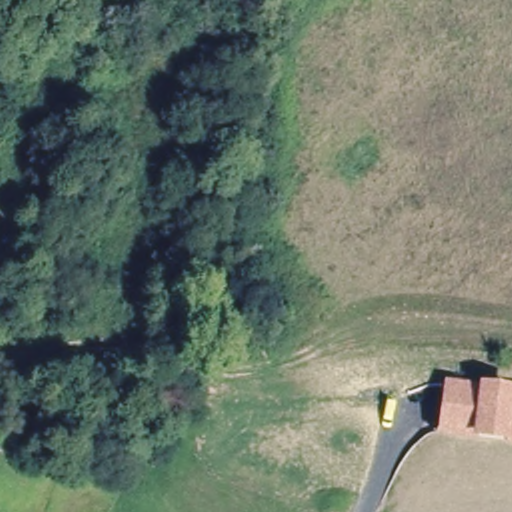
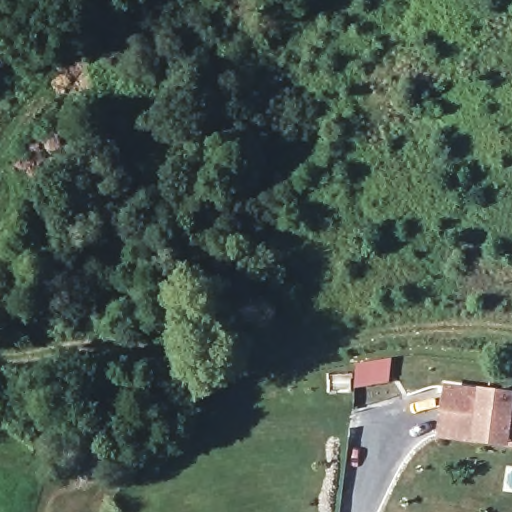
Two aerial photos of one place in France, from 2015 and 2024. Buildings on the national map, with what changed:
unchanged [(450,389),(512,397),(512,445),(444,437),(450,389)]

